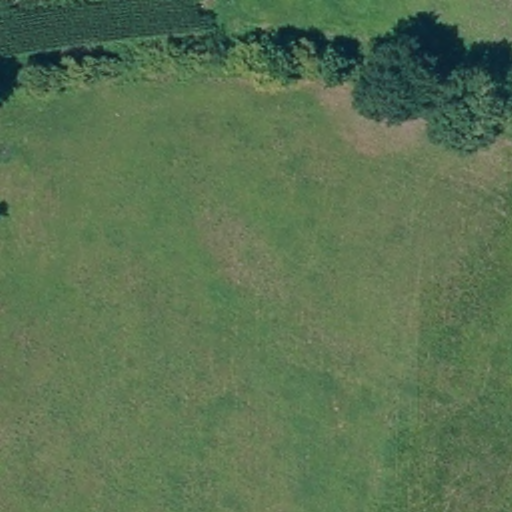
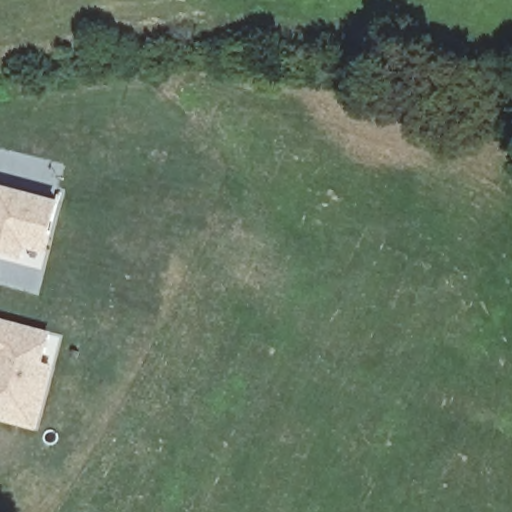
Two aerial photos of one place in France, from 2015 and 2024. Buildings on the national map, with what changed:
new [(27,248),(24,260),(6,255),(7,251),(0,249),(0,201),(2,191),(60,206),(52,237),(48,254),(27,248)]
new [(6,322),(49,332),(41,362),(41,363),(35,362),(25,401),(13,398),(8,418),(0,416),(0,320),(6,322)]
new [(13,398),(25,401),(35,362),(41,363),(41,362),(51,365),(36,425),(8,418),(13,398)]

